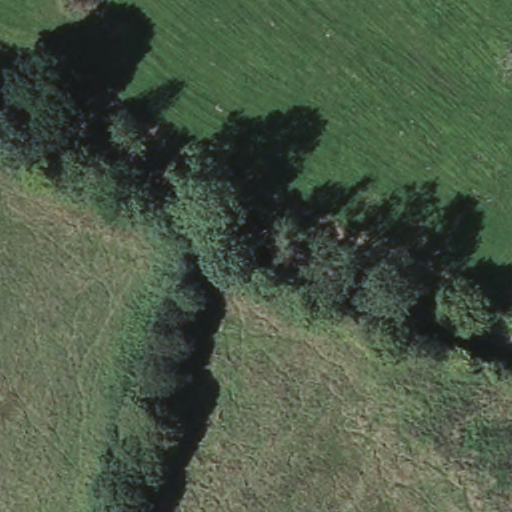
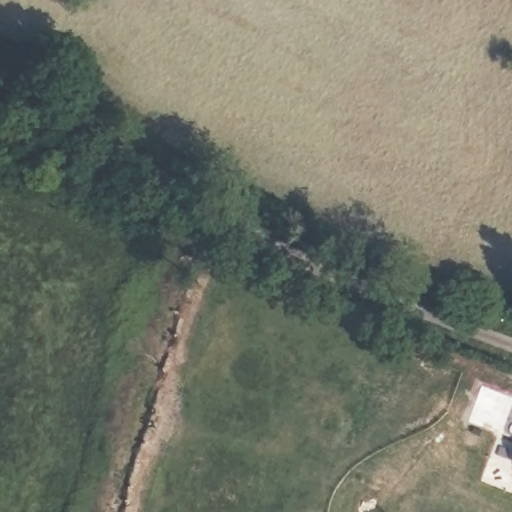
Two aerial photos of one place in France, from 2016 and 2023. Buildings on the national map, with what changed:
unchanged [(512,456),(512,460),(510,459),(512,456)]

